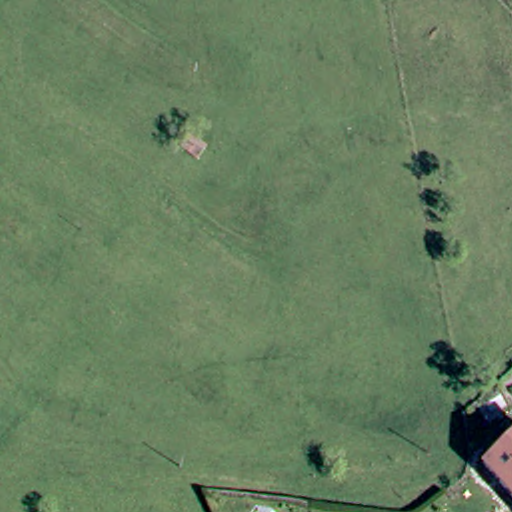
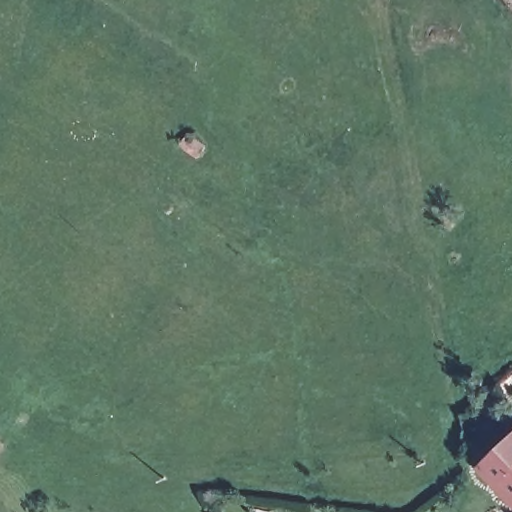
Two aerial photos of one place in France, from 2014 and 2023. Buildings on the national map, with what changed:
unchanged [(478,461),(512,431),(512,501),(478,461)]

